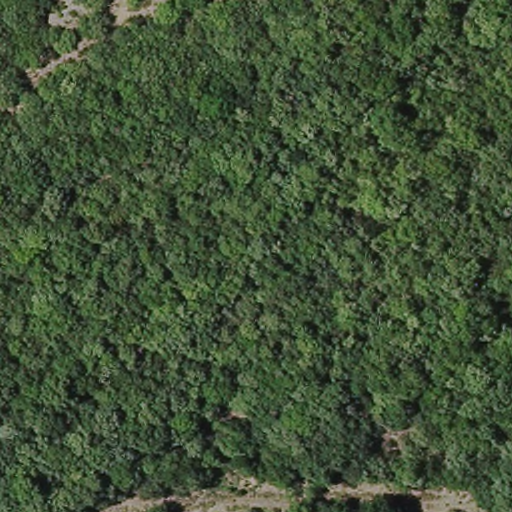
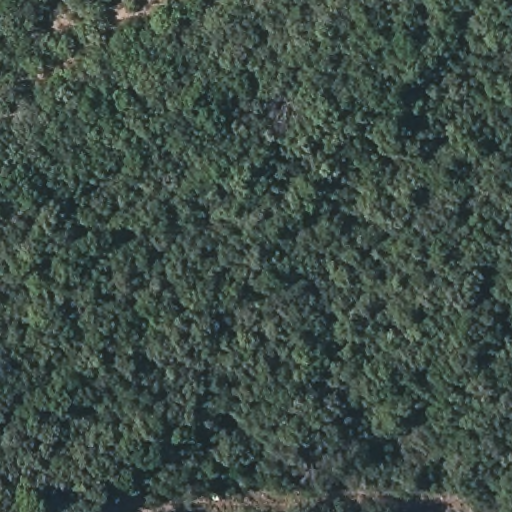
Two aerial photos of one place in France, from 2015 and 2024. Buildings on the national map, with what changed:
unchanged [(485,512),(481,512),(485,511),(485,512)]

